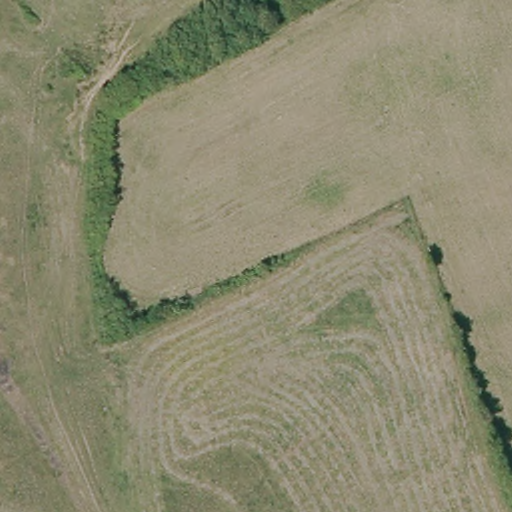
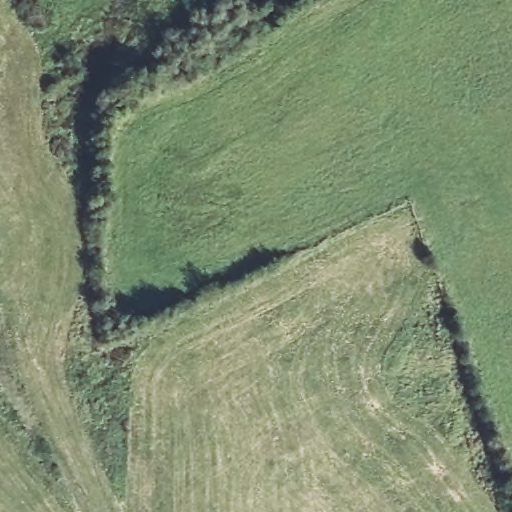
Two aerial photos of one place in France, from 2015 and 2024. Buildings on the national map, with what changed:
[]

